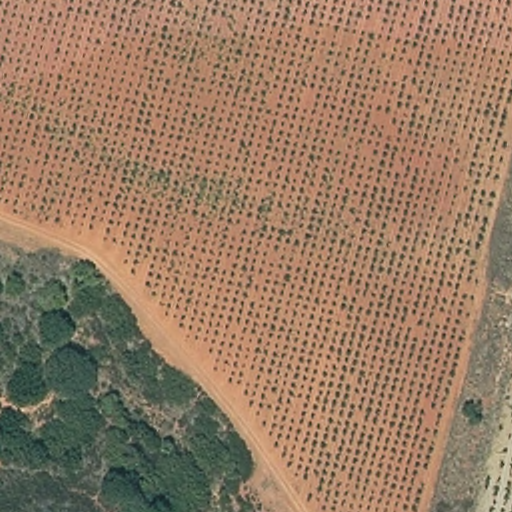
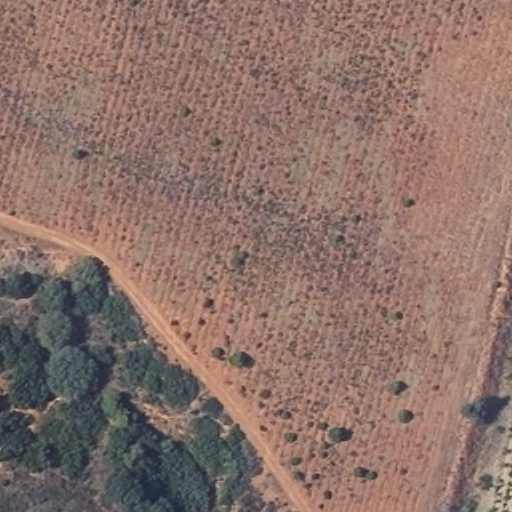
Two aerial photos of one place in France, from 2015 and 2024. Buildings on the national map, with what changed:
[]

